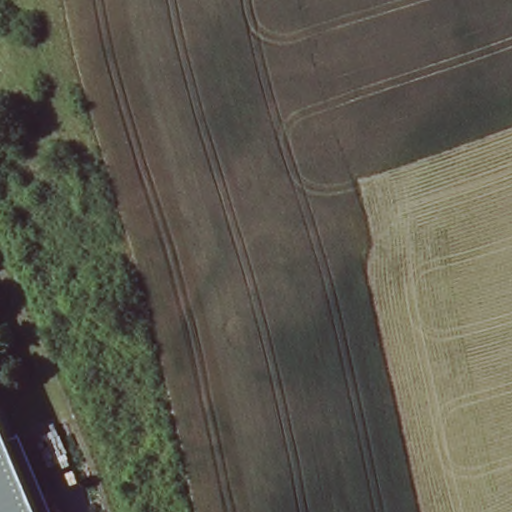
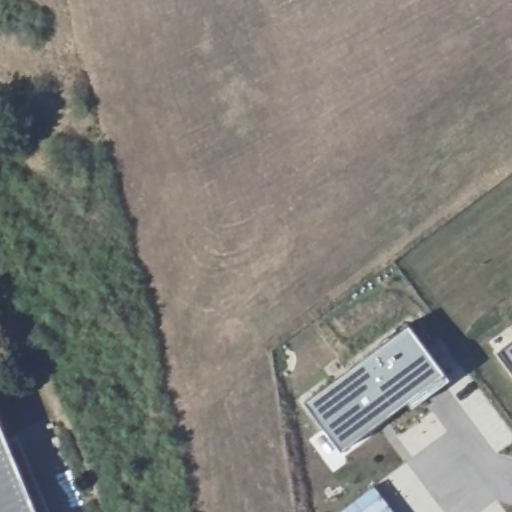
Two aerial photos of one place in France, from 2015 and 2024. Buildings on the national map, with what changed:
new [(410,325),(451,380),(413,408),(408,402),(342,451),(305,401),(410,325)]
unchanged [(35,512),(0,512),(0,426),(35,512)]
new [(374,485),(395,512),(338,512),(374,485)]

